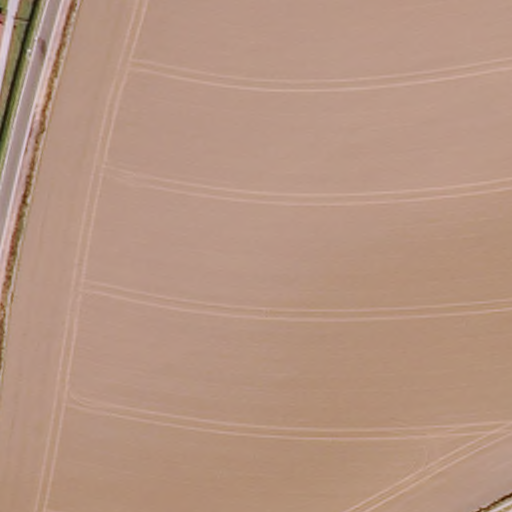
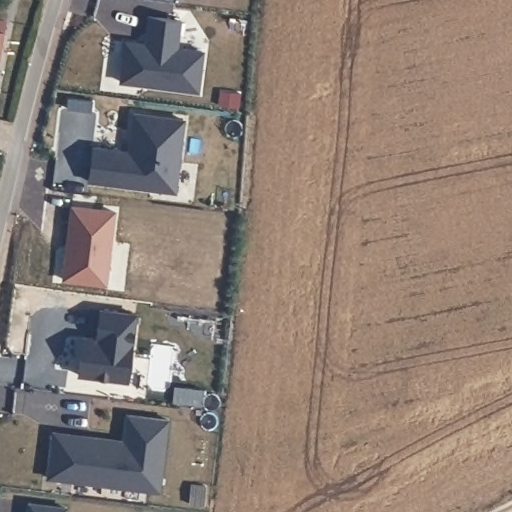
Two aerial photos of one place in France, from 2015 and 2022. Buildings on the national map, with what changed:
new [(119,82),(124,42),(147,45),(148,35),(145,34),(147,17),(179,21),(175,49),(202,52),(197,92),(119,82)]
unchanged [(0,46),(0,31),(3,32),(0,46)]
new [(183,121),(175,193),(88,183),(92,149),(121,152),(120,161),(130,162),(131,151),(128,151),(132,115),(183,121)]
new [(105,285),(63,279),(72,207),(115,213),(105,285)]
new [(78,374),(83,335),(105,338),(105,330),(98,329),(101,308),(137,312),(128,380),(78,374)]
new [(48,467),(52,434),(114,441),(113,446),(122,447),(126,416),(167,421),(159,492),(78,482),(47,478),(48,467)]
new [(68,507),(67,512),(25,512),(26,501),(68,507)]

